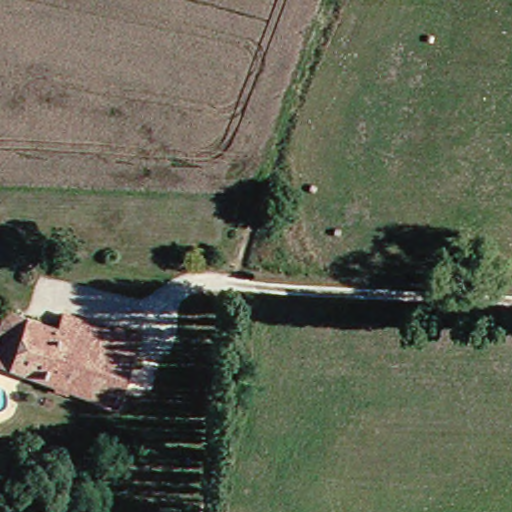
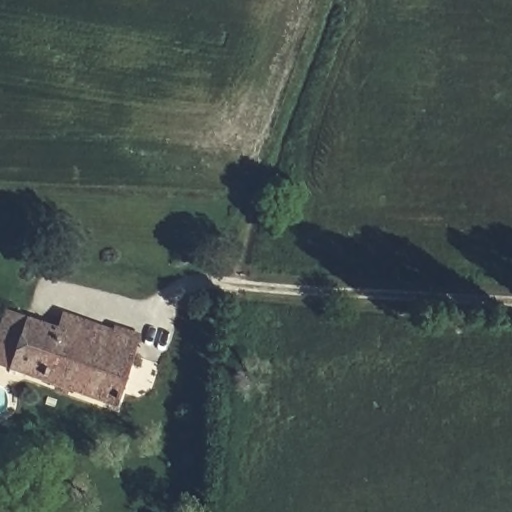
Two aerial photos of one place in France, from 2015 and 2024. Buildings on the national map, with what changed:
unchanged [(0,369),(0,316),(50,333),(56,317),(106,335),(130,344),(107,408),(0,369)]

